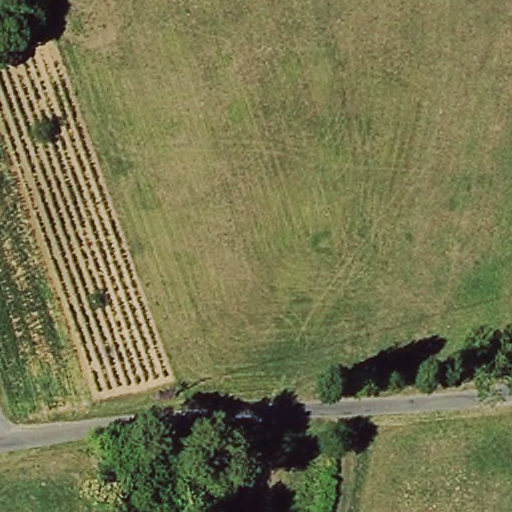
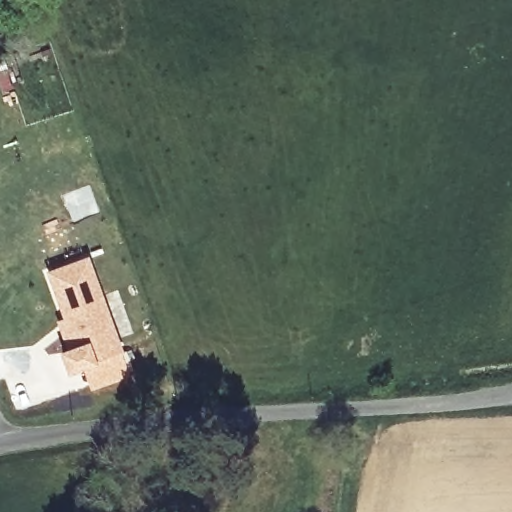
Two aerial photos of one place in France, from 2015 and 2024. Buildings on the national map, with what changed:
new [(123,353),(96,364),(68,375),(60,351),(66,349),(56,321),(63,318),(46,271),(88,256),(123,353)]

